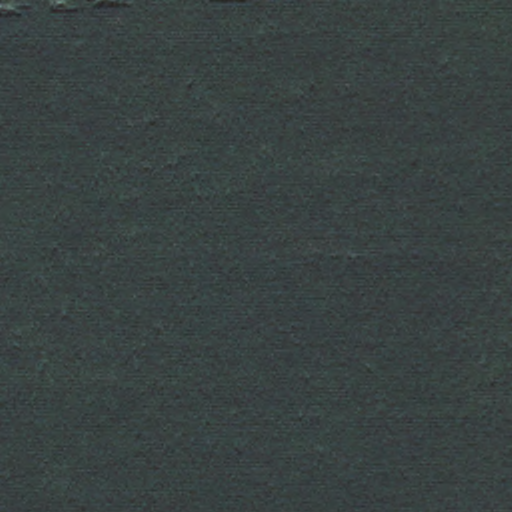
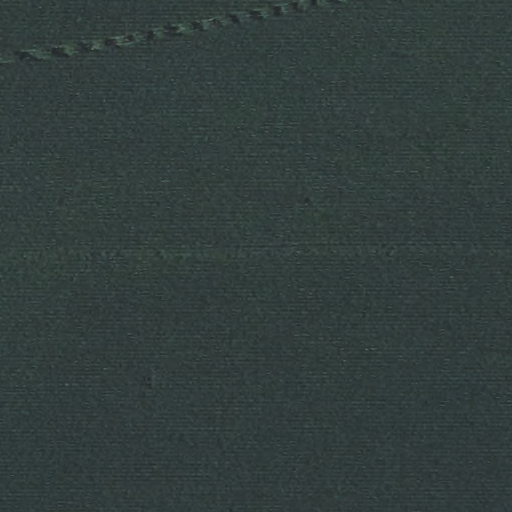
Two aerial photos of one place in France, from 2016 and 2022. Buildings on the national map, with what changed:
[]

